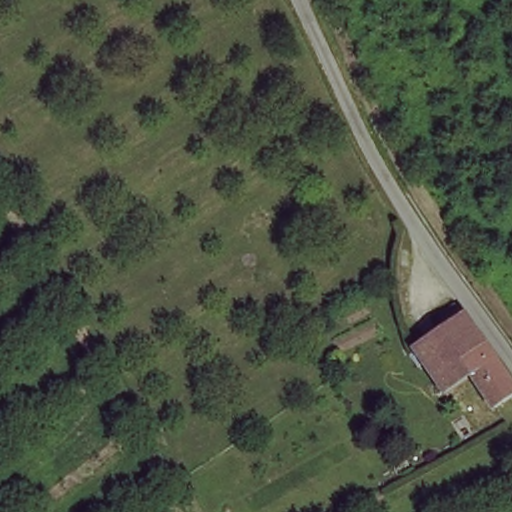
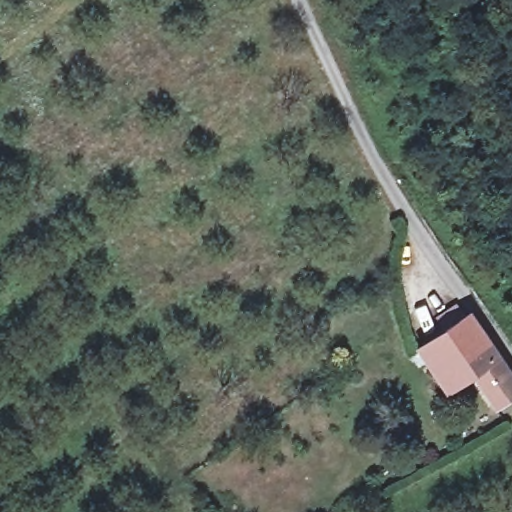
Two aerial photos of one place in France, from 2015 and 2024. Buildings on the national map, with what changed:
unchanged [(448,312),(465,302),(474,316),(512,379),(512,403),(500,410),(477,370),(452,328),(457,326),(448,312)]
unchanged [(477,370),(447,388),(423,345),(452,328),(477,370)]
unchanged [(433,467),(400,484),(389,465),(423,448),(433,467)]

